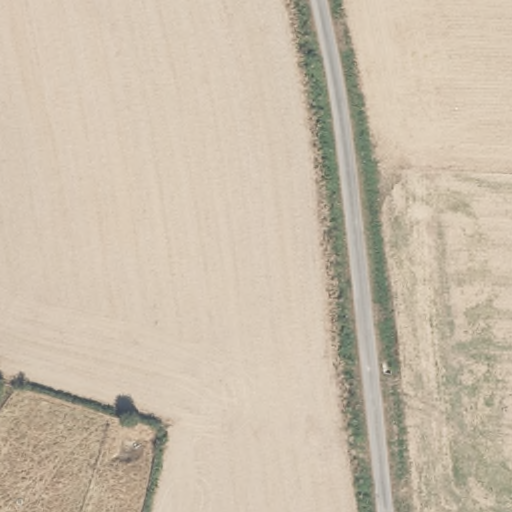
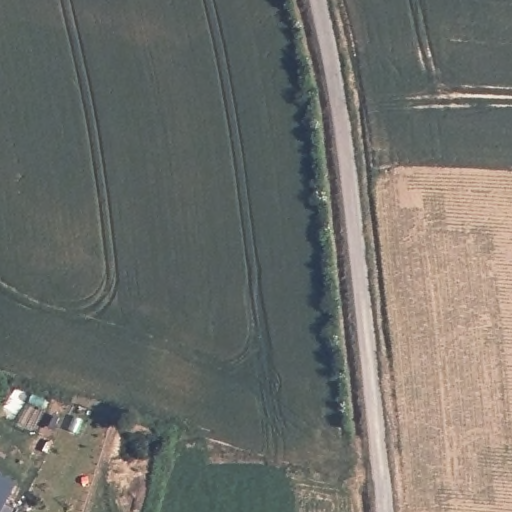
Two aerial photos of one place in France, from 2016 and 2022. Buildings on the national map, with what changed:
new [(16,480),(6,502),(17,508),(15,512),(0,512),(0,472),(16,480)]

